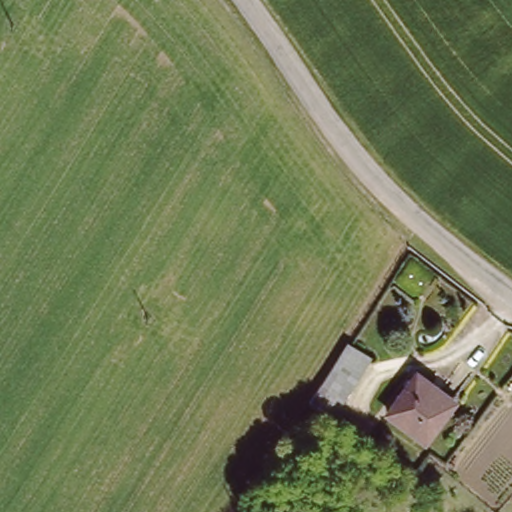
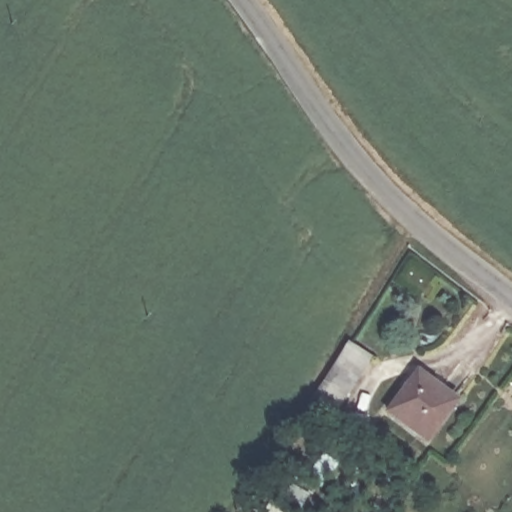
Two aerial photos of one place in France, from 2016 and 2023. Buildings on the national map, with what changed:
unchanged [(373,353),(335,413),(310,399),(313,394),(348,338),(373,353)]
unchanged [(457,400),(428,440),(390,413),(419,373),(457,400)]

